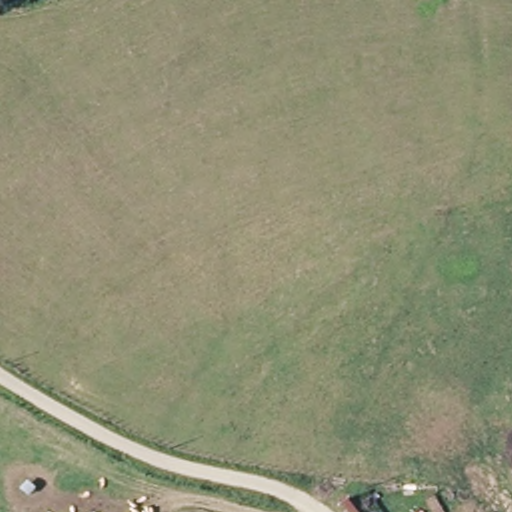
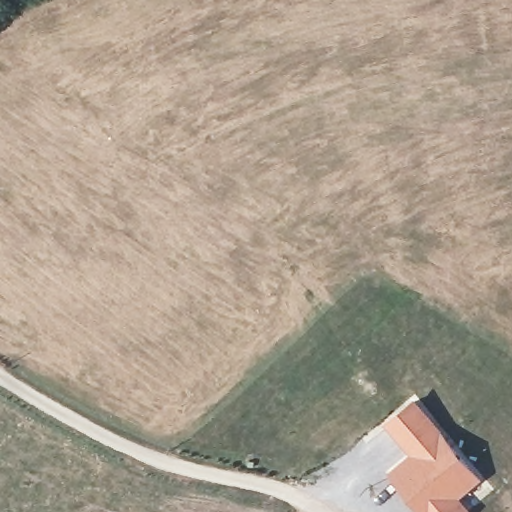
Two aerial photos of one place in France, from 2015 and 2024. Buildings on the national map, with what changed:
new [(483,478),(460,497),(471,511),(469,512),(421,512),(387,473),(410,452),(383,423),(413,397),(483,478)]

